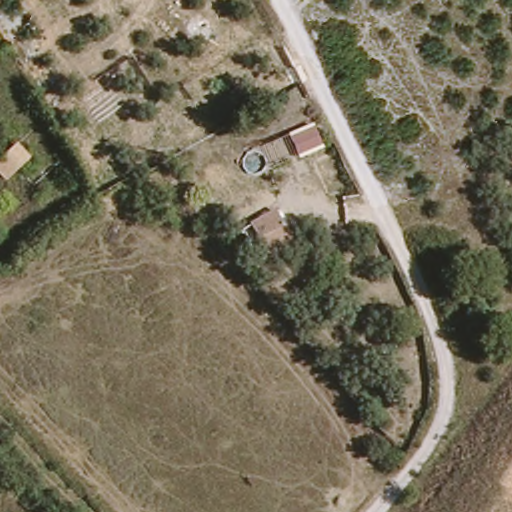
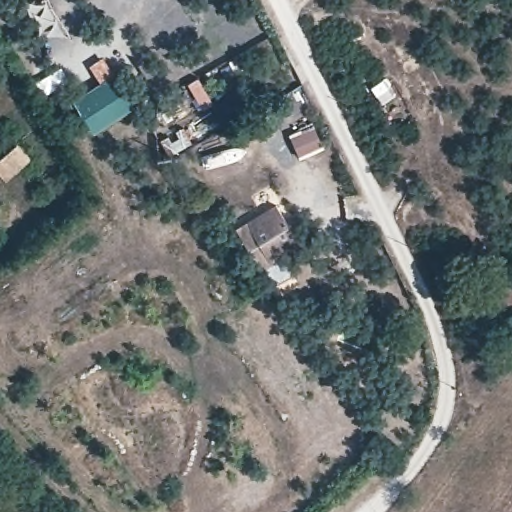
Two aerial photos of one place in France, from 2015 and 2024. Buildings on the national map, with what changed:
new [(72,101),(112,74),(135,107),(94,134),(72,101)]
unchanged [(64,140),(50,150),(37,131),(50,123),(64,140)]
unchanged [(39,161),(8,191),(0,182),(0,161),(20,142),(39,161)]
unchanged [(280,211),(305,249),(274,268),(250,229),(280,211)]

